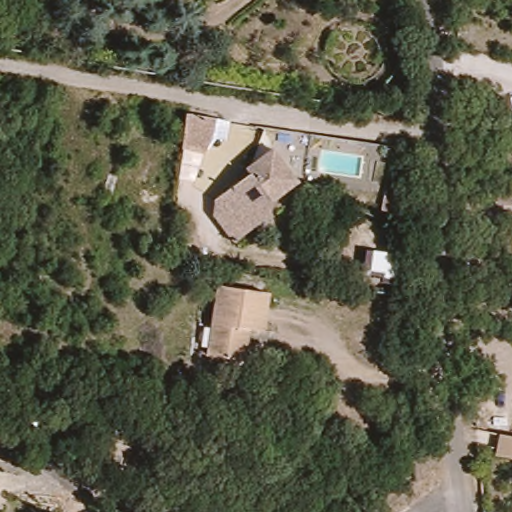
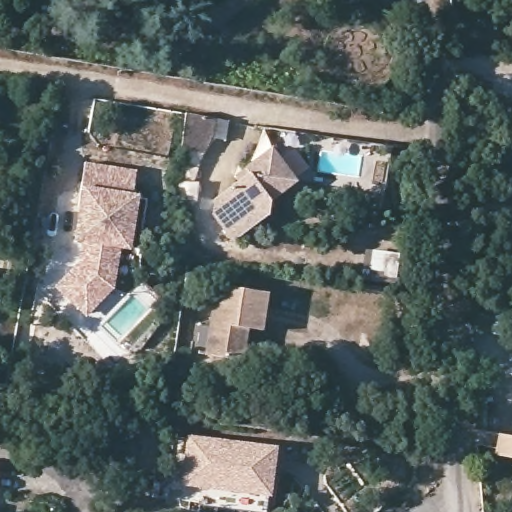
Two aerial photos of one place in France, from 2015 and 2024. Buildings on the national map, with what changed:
new [(187,110),(217,114),(214,131),(206,147),(182,144),(187,110)]
unchanged [(227,236),(214,221),(214,205),(235,191),(232,185),(269,156),(294,188),(272,205),(271,221),(237,246),(227,236)]
new [(137,170),(134,194),(140,195),(132,251),(123,249),(116,290),(87,317),(56,286),(79,263),(83,242),(74,242),(86,162),(137,170)]
unchanged [(242,357),(206,358),(215,286),(272,291),(267,330),(245,328),(242,357)]
unchanged [(497,434),(512,438),(512,458),(493,453),(497,434)]
new [(181,486),(188,437),(276,447),(269,497),(181,486)]

